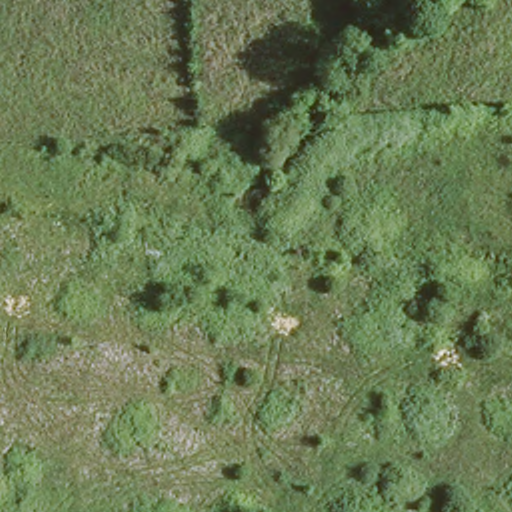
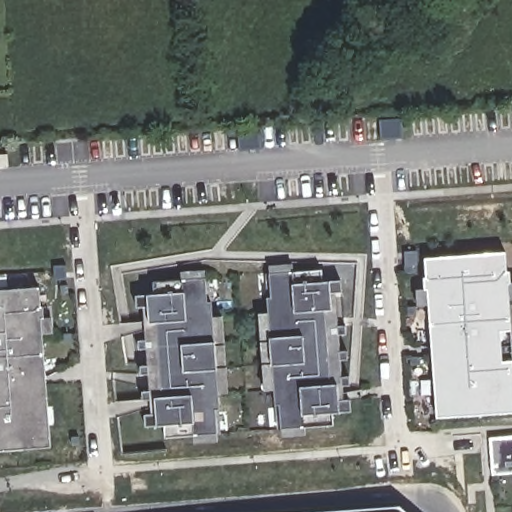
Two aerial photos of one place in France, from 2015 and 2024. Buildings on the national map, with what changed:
new [(7,155),(8,165),(0,166),(0,155),(7,155)]
new [(512,411),(437,416),(424,258),(505,252),(512,338),(512,411)]
new [(278,406),(275,406),(267,297),(271,297),(268,273),(321,270),(322,281),(336,280),(345,412),(333,413),(335,424),(280,428),(278,406)]
new [(167,436),(165,425),(156,426),(148,294),(155,293),(152,282),(181,281),(181,278),(206,277),(209,302),(211,301),(220,410),(215,410),(217,432),(167,436)]
new [(0,450),(0,290),(40,287),(52,446),(0,450)]
new [(490,436),(512,435),(512,472),(492,473),(490,436)]
new [(405,512),(310,512),(397,505),(405,512)]

